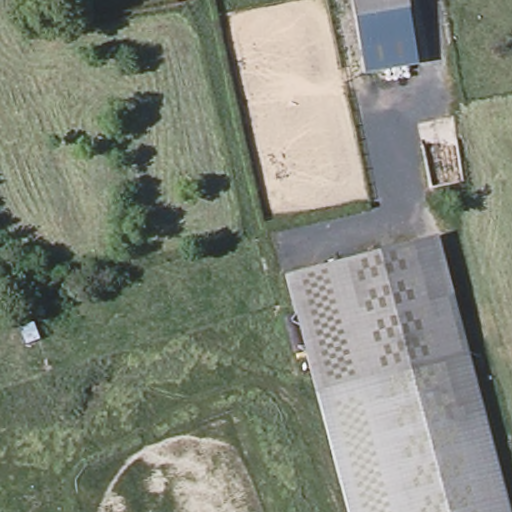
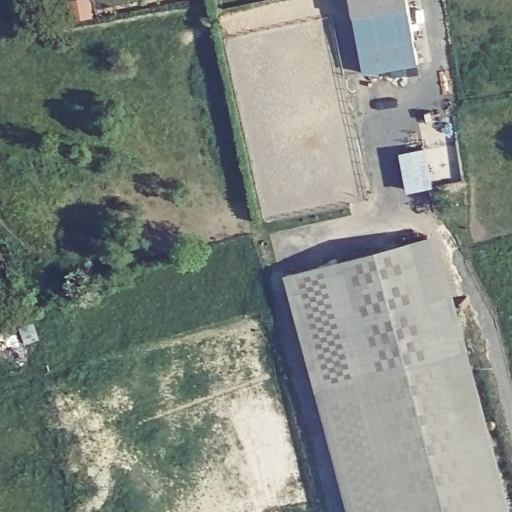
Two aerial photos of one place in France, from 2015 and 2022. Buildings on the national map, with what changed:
unchanged [(407,0),(407,6),(354,15),(351,0),(407,0)]
unchanged [(378,71),(364,73),(354,15),(407,6),(417,64),(405,66),(378,71)]
new [(425,152),(432,190),(407,195),(400,157),(425,152)]
unchanged [(423,236),(438,294),(454,353),(375,374),(344,257),(423,236)]
unchanged [(321,388),(290,271),(344,257),(375,374),(321,388)]
unchanged [(458,288),(474,347),(470,349),(454,353),(438,294),(458,288)]
unchanged [(454,353),(470,349),(512,512),(356,512),(321,388),(375,374),(454,353)]

